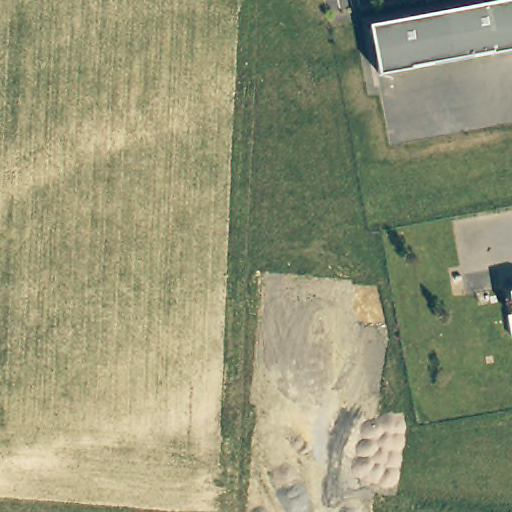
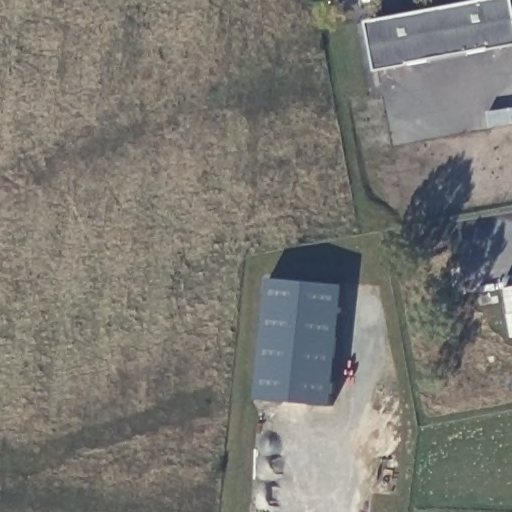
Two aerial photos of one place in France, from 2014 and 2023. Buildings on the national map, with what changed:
unchanged [(510,0),(512,10),(512,49),(485,54),(485,52),(406,66),(406,68),(372,74),(362,24),(493,0),(510,0)]
new [(270,280),(345,285),(332,406),(256,399),(270,280)]
new [(507,288),(512,287),(512,313),(507,288)]

